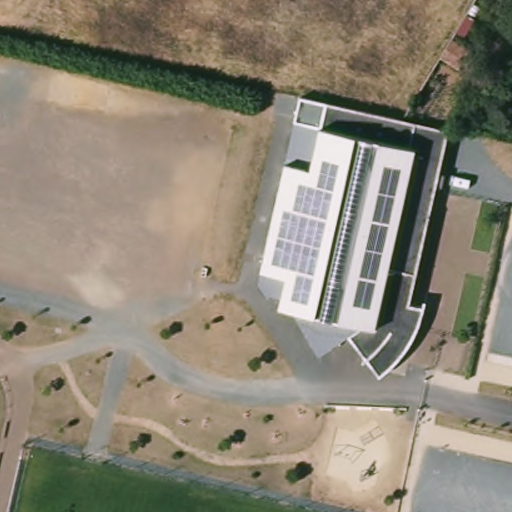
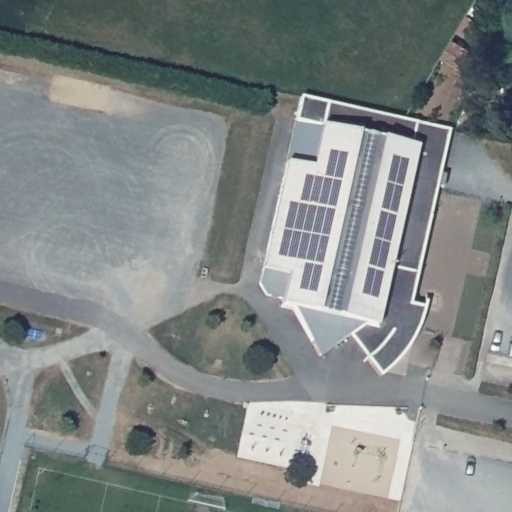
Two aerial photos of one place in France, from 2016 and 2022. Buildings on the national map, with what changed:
unchanged [(321,130),(327,107),(378,119),(396,123),(398,123),(449,136),(411,311),(426,315),(424,328),(417,344),(401,340),(394,365),(372,358),(369,366),(355,345),(318,366),(282,306),(268,305),(256,290),(295,124),(321,130)]

